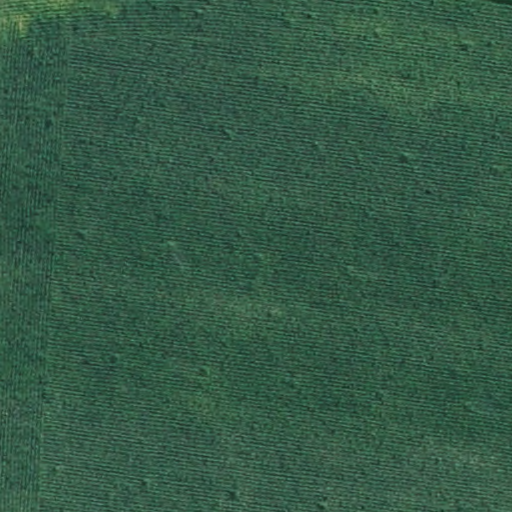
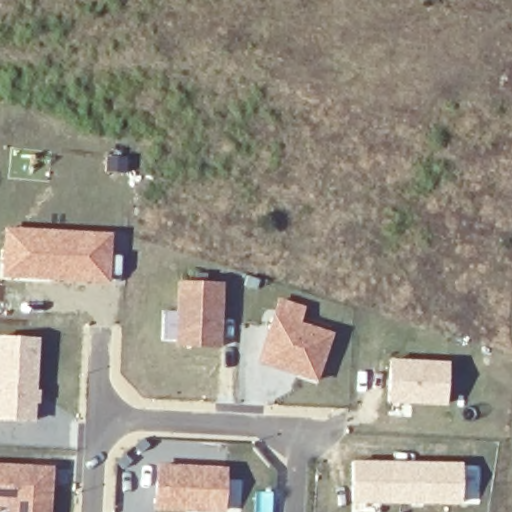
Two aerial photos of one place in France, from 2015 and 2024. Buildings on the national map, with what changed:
new [(4,225),(112,232),(112,253),(122,254),(121,276),(110,275),(110,284),(1,278),(4,225)]
new [(176,279),(224,281),(222,349),(174,347),(176,279)]
new [(333,332),(318,382),(257,364),(274,313),(333,332)]
new [(36,339),(32,419),(0,419),(0,337),(36,339)]
new [(448,360),(446,405),(389,402),(390,358),(448,360)]
new [(352,459),(418,460),(481,465),(479,502),(463,501),(463,504),(351,503),(352,459)]
new [(54,465),(51,512),(7,512),(7,508),(0,507),(0,462),(54,465)]
new [(229,466),(228,478),(242,479),(238,511),(224,509),(224,512),(175,512),(153,510),(156,462),(229,466)]

